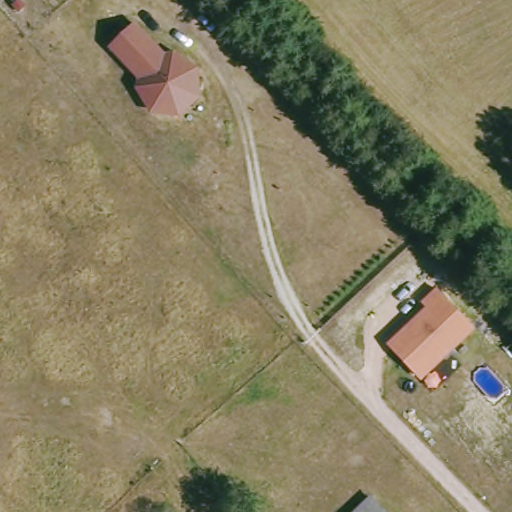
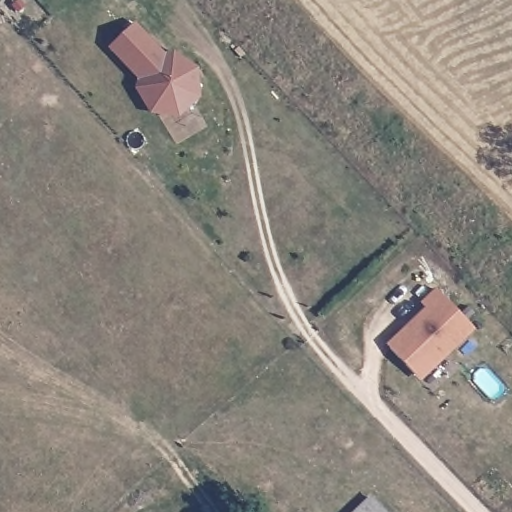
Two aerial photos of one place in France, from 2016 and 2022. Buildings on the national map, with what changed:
unchanged [(108,49),(136,25),(165,58),(175,54),(199,71),(202,99),(180,121),(150,117),(135,91),(140,81),(108,49)]
unchanged [(388,346),(426,310),(420,305),(437,290),(475,332),(422,383),(388,346)]
unchanged [(365,492),(385,512),(344,512),(365,492)]

